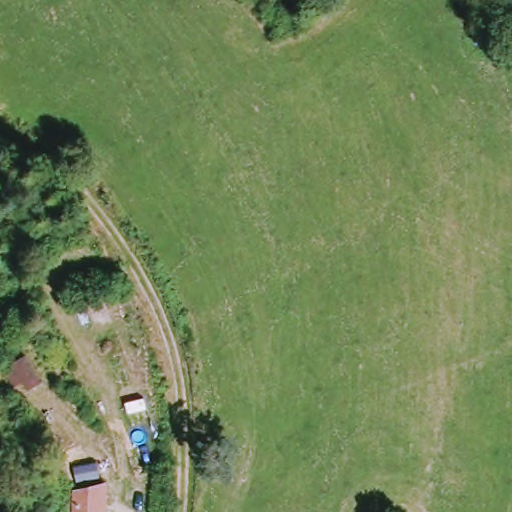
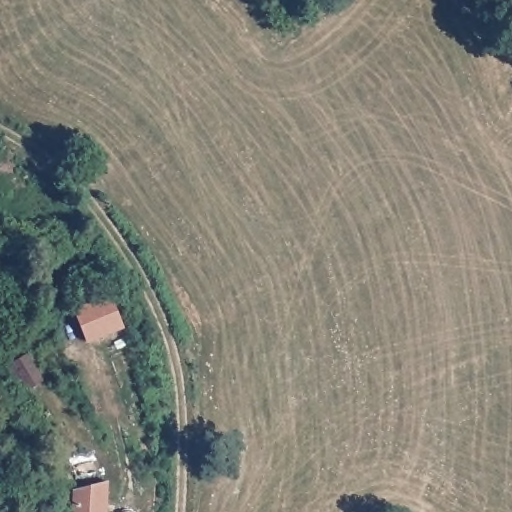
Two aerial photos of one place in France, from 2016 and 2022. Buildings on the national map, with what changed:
new [(73,311),(111,297),(124,329),(87,343),(73,311)]
unchanged [(13,394),(10,383),(0,386),(0,365),(20,360),(28,390),(13,394)]
unchanged [(105,512),(71,512),(72,491),(106,482),(105,512)]

